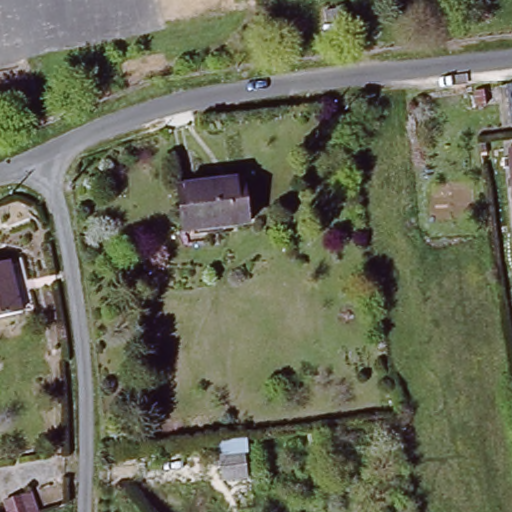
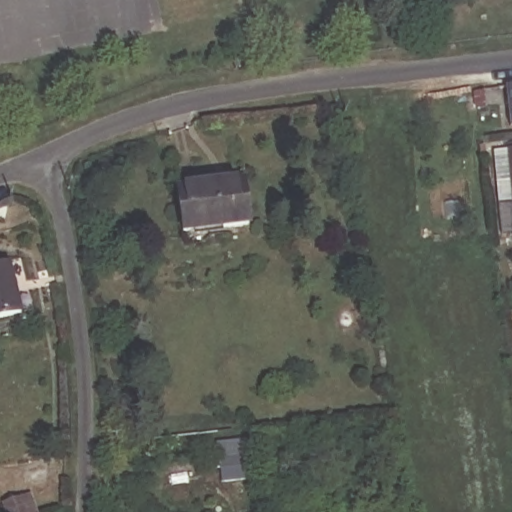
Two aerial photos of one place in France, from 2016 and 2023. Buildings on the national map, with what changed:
unchanged [(353,16),(354,27),(336,31),(334,19),(353,16)]
unchanged [(512,122),(511,122),(506,76),(512,76),(512,122)]
unchanged [(512,150),(512,189),(509,150),(512,150)]
unchanged [(243,174),(251,220),(188,229),(183,184),(243,174)]
unchanged [(9,260),(23,313),(16,315),(0,319),(0,263),(6,261),(9,260)]
unchanged [(250,434),(254,464),(230,468),(226,438),(250,434)]
unchanged [(41,482),(47,508),(30,512),(18,512),(14,487),(41,482)]

